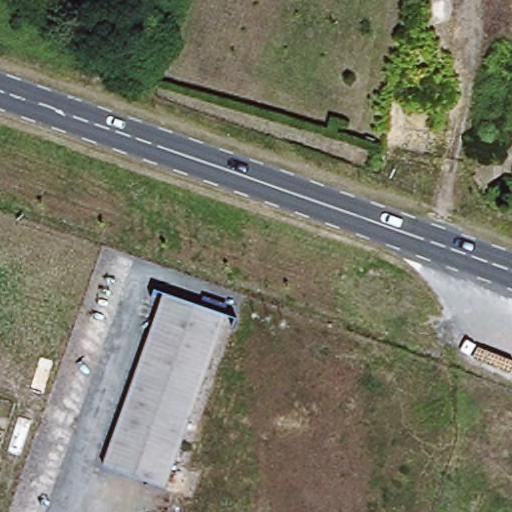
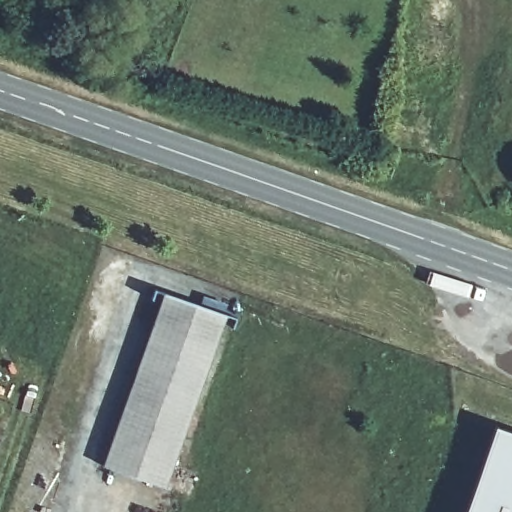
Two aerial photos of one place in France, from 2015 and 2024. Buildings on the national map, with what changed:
unchanged [(186,307),(192,297),(208,303),(206,315),(224,320),(172,471),(110,450),(161,300),(186,307)]
new [(493,428),(512,434),(512,512),(465,512),(493,428)]
unchanged [(101,472),(110,450),(172,471),(165,494),(101,472)]

